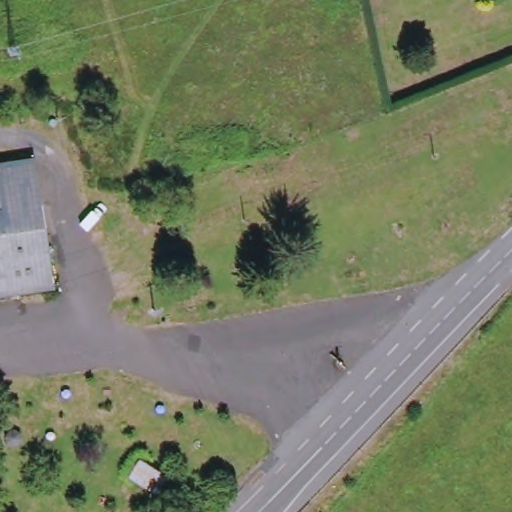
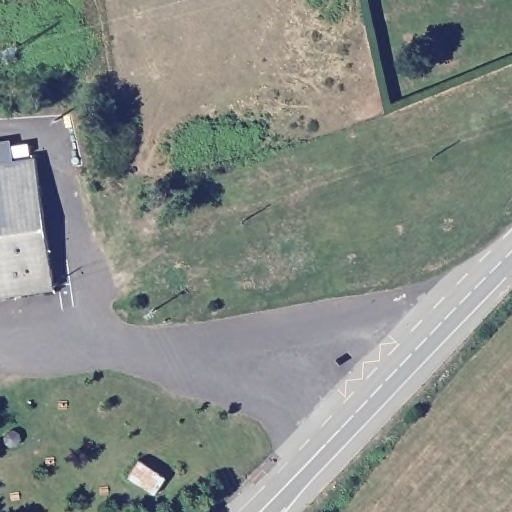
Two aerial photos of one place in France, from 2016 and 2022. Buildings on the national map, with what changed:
unchanged [(37,163),(55,292),(0,300),(0,168),(37,163)]
unchanged [(128,475),(140,457),(168,477),(155,494),(128,475)]

